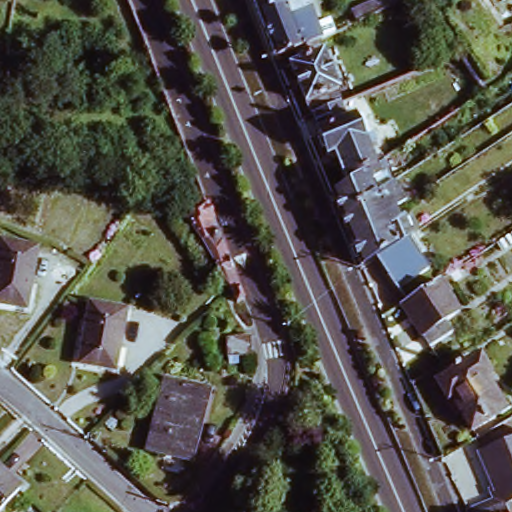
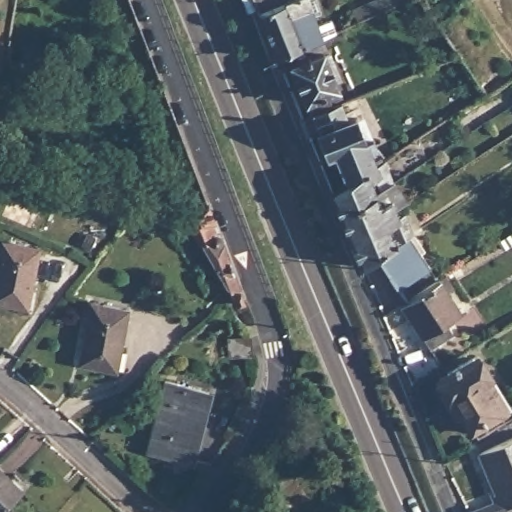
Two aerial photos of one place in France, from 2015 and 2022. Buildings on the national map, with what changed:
unchanged [(255,0),(281,0),(259,10),(255,0)]
unchanged [(320,36),(277,54),(259,10),(281,0),(309,0),(324,34),(320,36)]
unchanged [(292,62),(283,67),(277,54),(320,36),(346,99),(344,100),(313,112),(292,62)]
unchanged [(335,150),(330,152),(313,112),(344,100),(351,117),(357,115),(367,137),(373,134),(377,144),(370,147),(378,160),(349,179),(335,150)]
unchanged [(395,178),(342,211),(333,189),(349,179),(378,160),(385,156),(395,178)]
unchanged [(352,232),(342,211),(395,178),(401,192),(393,196),(397,205),(352,232)]
unchanged [(235,305),(226,291),(181,215),(206,205),(242,301),(235,305)]
unchanged [(410,233),(378,253),(364,262),(352,232),(397,205),(401,212),(407,209),(416,229),(410,233)]
unchanged [(378,253),(410,233),(430,263),(398,285),(378,253)]
unchanged [(30,305),(0,300),(0,267),(5,239),(40,245),(30,305)]
unchanged [(403,301),(441,276),(462,308),(447,317),(454,329),(431,344),(403,301)]
unchanged [(78,360),(90,301),(124,307),(112,367),(78,360)]
unchanged [(248,356),(225,357),(224,340),(248,338),(248,356)]
unchanged [(471,427),(453,397),(452,397),(440,377),(476,356),(489,377),(485,379),(502,408),(471,427)]
unchanged [(146,448),(163,379),(205,389),(189,459),(146,448)]
unchanged [(512,440),(512,475),(494,483),(481,453),(512,440)]
unchanged [(17,485),(0,503),(0,469),(17,485)]
unchanged [(497,504),(492,495),(498,492),(494,483),(512,475),(512,505),(507,507),(509,512),(477,512),(497,504)]

